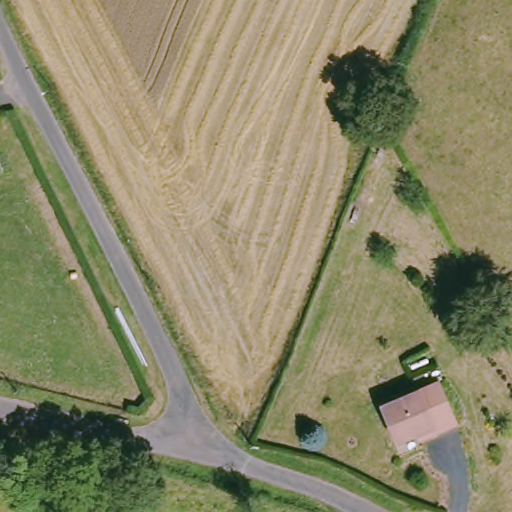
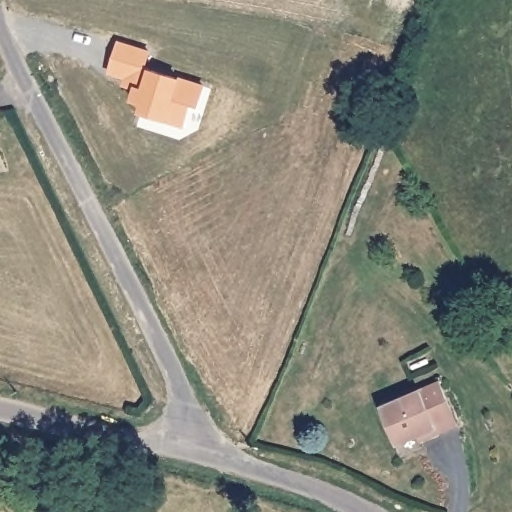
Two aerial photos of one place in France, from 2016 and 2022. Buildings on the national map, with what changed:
new [(153,55),(148,71),(207,90),(202,110),(194,107),(187,127),(145,114),(148,106),(137,102),(140,91),(137,89),(129,87),(131,79),(114,74),(122,46),(153,55)]
unchanged [(400,446),(383,412),(437,387),(458,431),(438,440),(424,447),(419,437),(400,446)]

